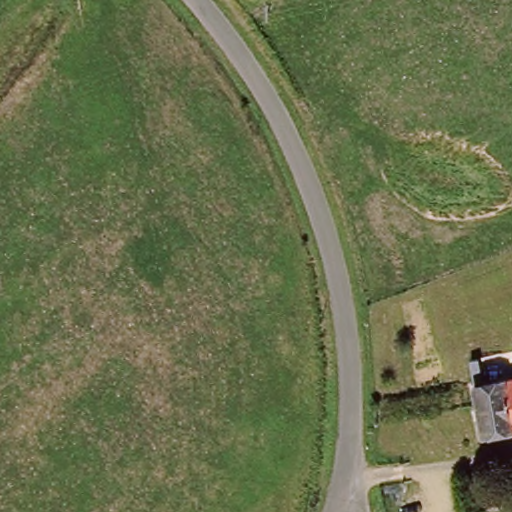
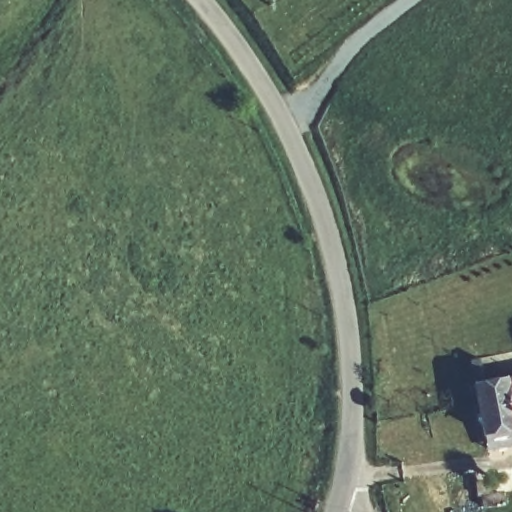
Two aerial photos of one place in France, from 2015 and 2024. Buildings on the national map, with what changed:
unchanged [(512,432),(475,438),(467,389),(512,381),(512,432)]
unchanged [(511,494),(492,496),(491,487),(512,485),(511,494)]

